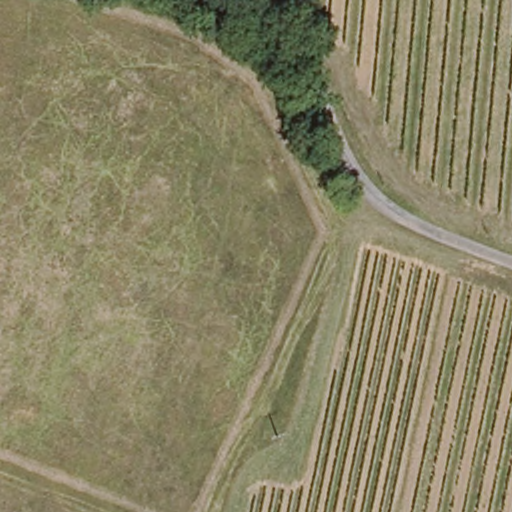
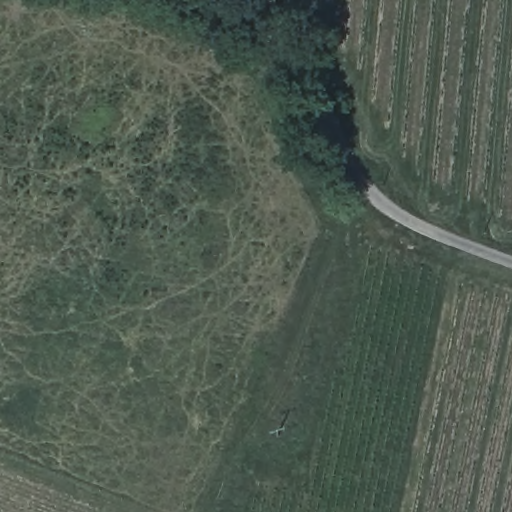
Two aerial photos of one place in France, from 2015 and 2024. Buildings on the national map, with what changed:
[]

